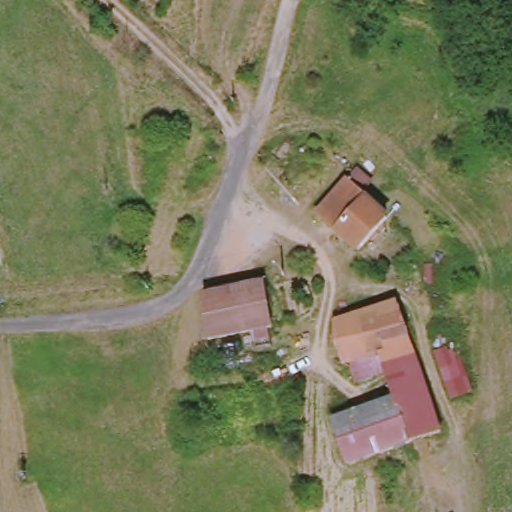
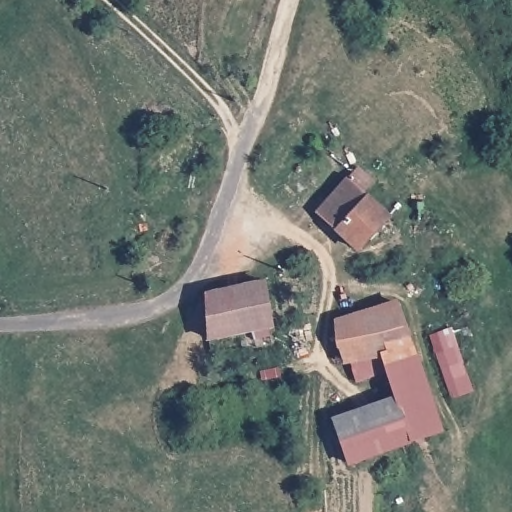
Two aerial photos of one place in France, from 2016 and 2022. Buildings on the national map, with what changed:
unchanged [(321,211),(357,172),(371,183),(362,194),(386,216),(355,246),(321,211)]
unchanged [(270,324),(208,338),(205,293),(262,281),(270,324)]
unchanged [(392,305),(445,431),(348,463),(333,419),(395,396),(379,353),(347,360),(336,338),(332,321),(392,305)]

